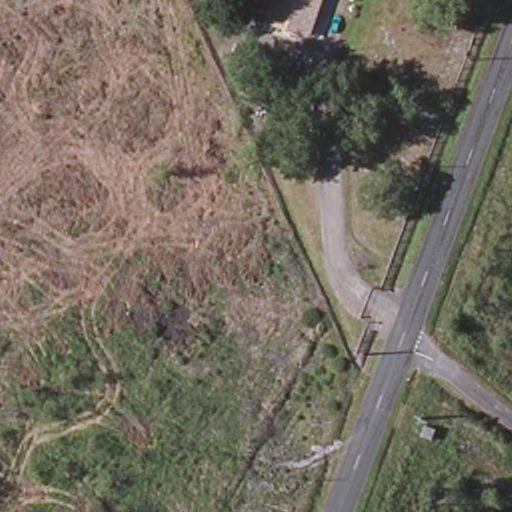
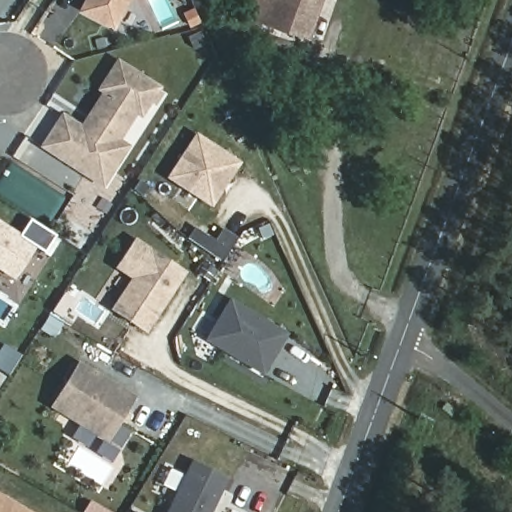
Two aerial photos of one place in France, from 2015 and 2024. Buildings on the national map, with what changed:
new [(114,30),(76,9),(81,0),(129,0),(114,30)]
unchanged [(259,29),(269,0),(322,0),(308,44),(259,29)]
new [(121,140),(130,145),(102,189),(39,147),(61,112),(81,125),(102,94),(96,89),(117,59),(162,87),(141,120),(135,116),(121,140)]
new [(210,208),(165,179),(195,134),(240,162),(210,208)]
new [(14,280),(0,271),(0,221),(37,245),(14,280)]
new [(145,335),(110,310),(130,278),(114,268),(134,237),(186,272),(145,335)]
new [(262,376),(202,341),(229,297),(287,333),(262,376)]
new [(48,407),(77,360),(135,397),(107,442),(48,407)]
new [(164,512),(191,460),(228,478),(211,512),(164,512)]
new [(26,512),(0,512),(0,496),(26,512)]

